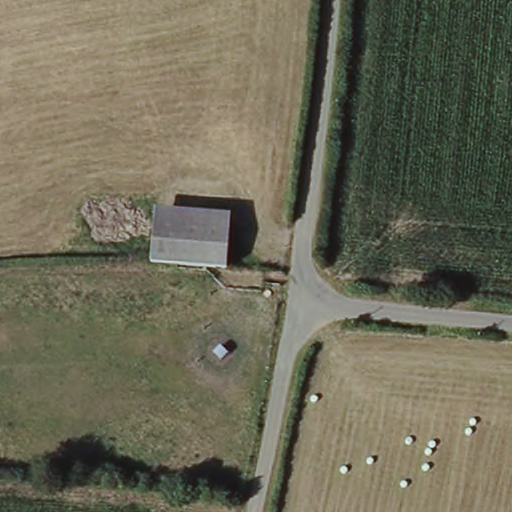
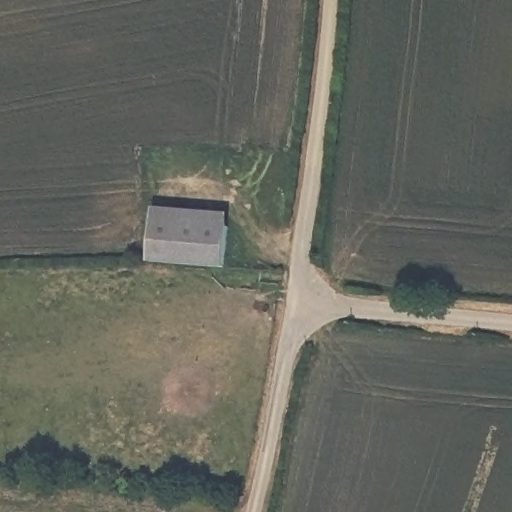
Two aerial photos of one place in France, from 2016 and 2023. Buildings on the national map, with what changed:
unchanged [(155,219),(235,230),(230,271),(156,263),(149,262),(155,219)]

